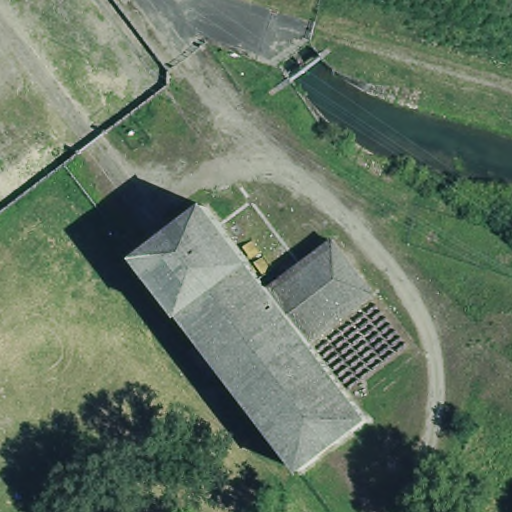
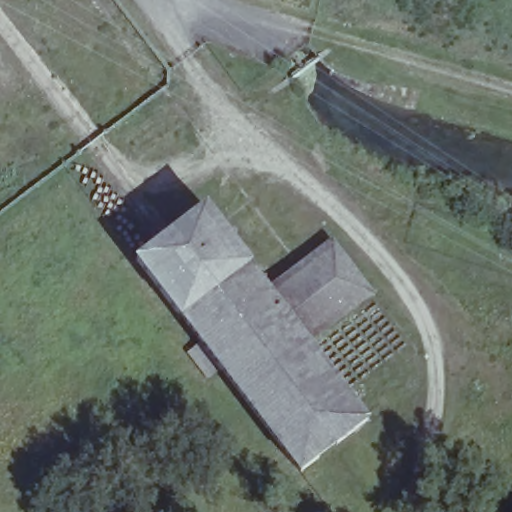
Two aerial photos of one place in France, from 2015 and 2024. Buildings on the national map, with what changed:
unchanged [(265,283),(292,262),(334,312),(302,335),(362,413),(295,465),(135,253),(202,200),(265,283)]
unchanged [(367,287),(334,312),(292,262),(327,234),(367,287)]

